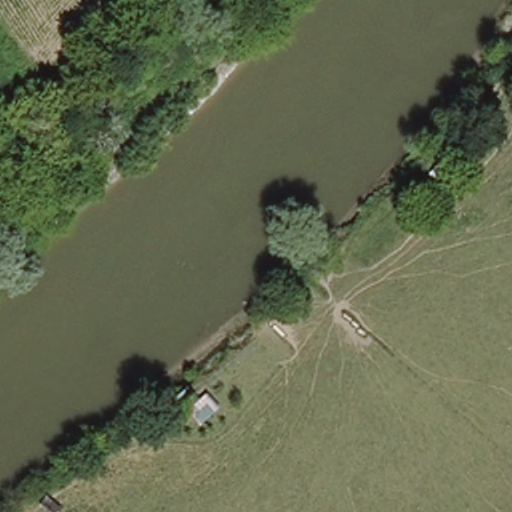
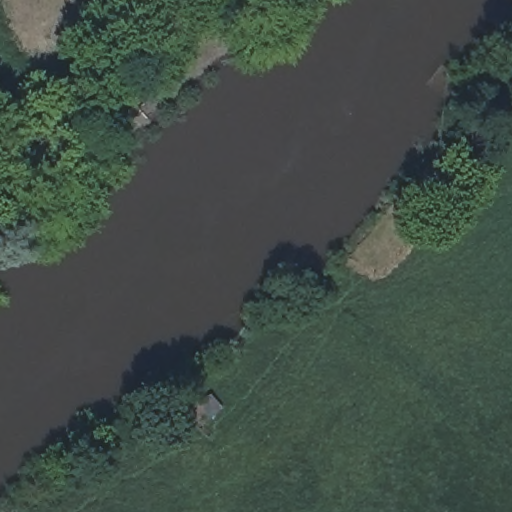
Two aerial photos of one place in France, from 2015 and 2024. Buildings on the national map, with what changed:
unchanged [(438,187),(426,175),(450,145),(465,159),(438,187)]

